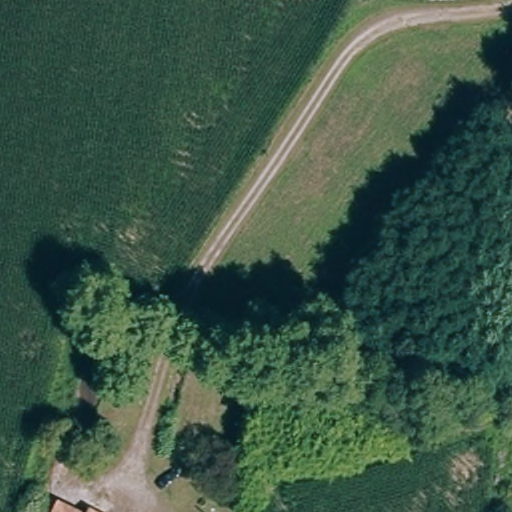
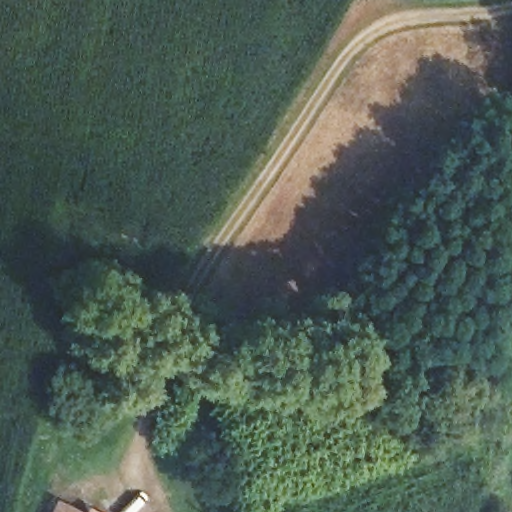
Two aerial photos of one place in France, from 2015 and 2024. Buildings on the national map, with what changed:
unchanged [(57,507),(67,512),(55,512),(57,507)]

